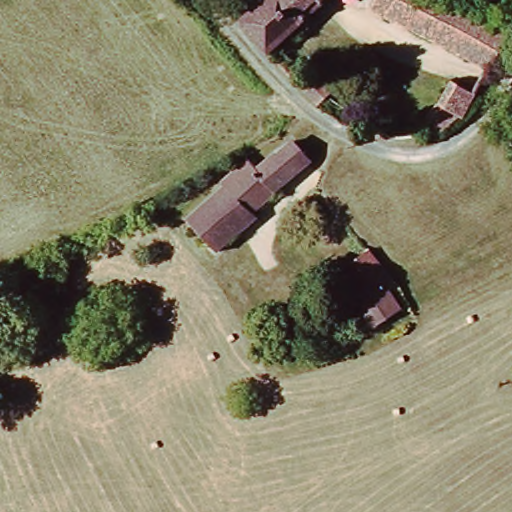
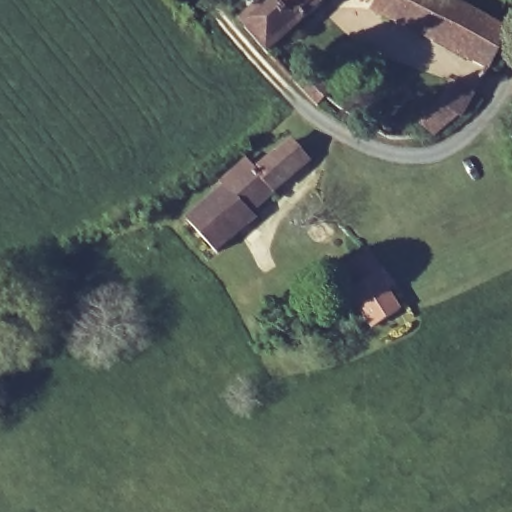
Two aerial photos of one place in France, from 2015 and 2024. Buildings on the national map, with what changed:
unchanged [(268,60),(237,25),(265,0),(328,0),(268,60)]
unchanged [(509,33),(494,57),(380,11),(382,6),(372,0),(416,0),(509,33)]
unchanged [(322,97),(301,77),(310,68),(333,86),(328,94),(322,97)]
unchanged [(347,84),(366,98),(358,111),(339,98),(347,84)]
unchanged [(457,89),(475,98),(458,122),(429,138),(420,122),(443,109),(457,89)]
unchanged [(220,183),(251,164),(261,174),(287,147),(302,164),(250,218),(219,250),(194,222),(221,199),(220,183)]
unchanged [(391,320),(362,328),(352,287),(345,264),(360,261),(387,253),(399,296),(394,299),(390,300),(391,320)]

